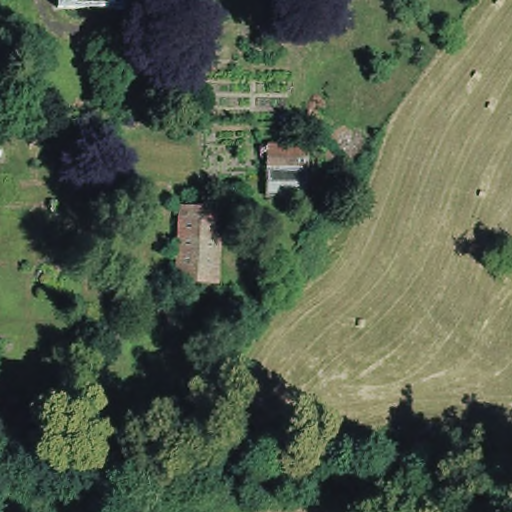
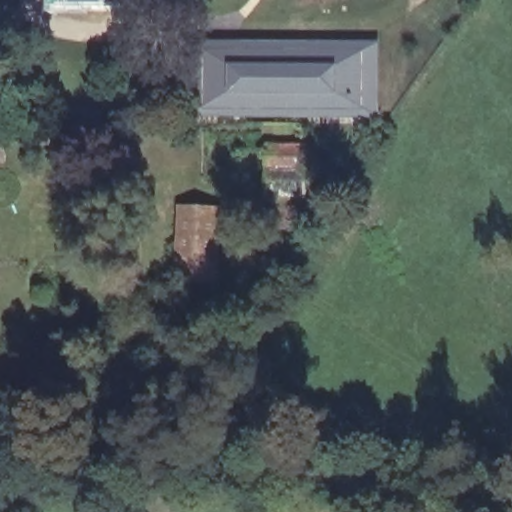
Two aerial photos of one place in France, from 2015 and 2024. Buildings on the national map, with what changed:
unchanged [(122,10),(56,9),(56,0),(122,0),(122,10)]
new [(203,39),(378,41),(379,120),(200,116),(203,39)]
unchanged [(311,149),(310,197),(270,196),(272,148),(311,149)]
unchanged [(217,209),(216,231),(215,284),(178,283),(180,208),(217,209)]
unchanged [(142,492),(143,512),(115,512),(113,492),(142,492)]

